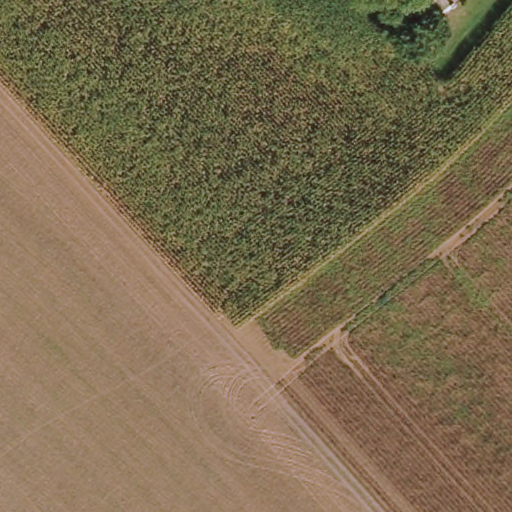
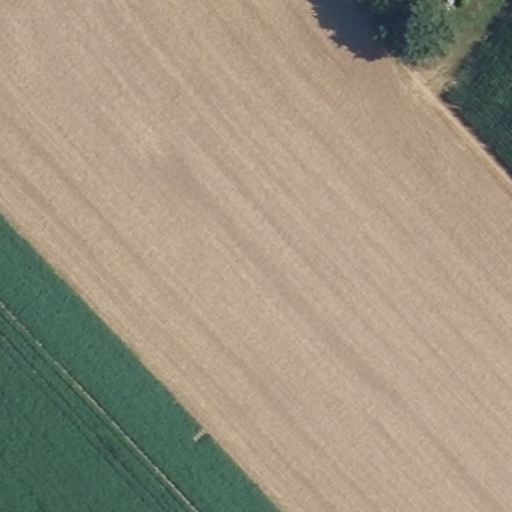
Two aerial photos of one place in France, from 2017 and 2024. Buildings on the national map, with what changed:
unchanged [(420,22),(409,7),(418,0),(437,0),(442,5),(420,22)]

